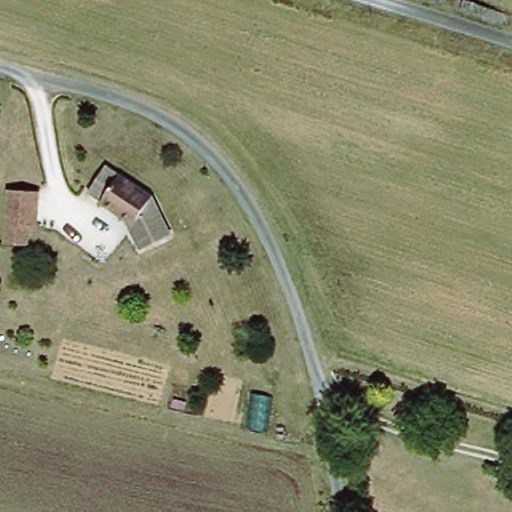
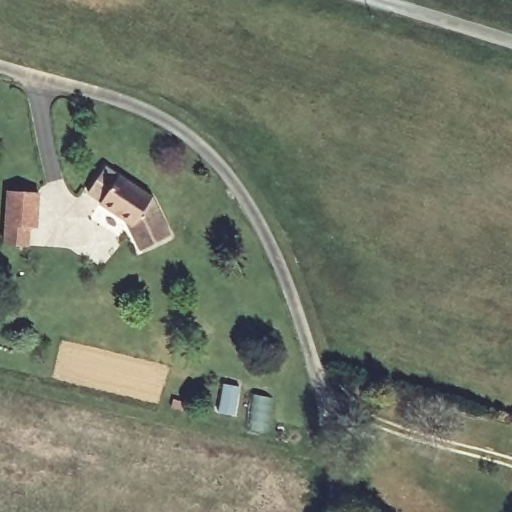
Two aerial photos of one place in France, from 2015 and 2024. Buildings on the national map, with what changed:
unchanged [(106,167),(148,195),(155,204),(171,236),(143,249),(129,221),(100,203),(101,199),(89,192),(92,189),(106,167)]
unchanged [(13,221),(15,186),(44,188),(42,223),(34,222),(33,240),(11,238),(13,221)]

